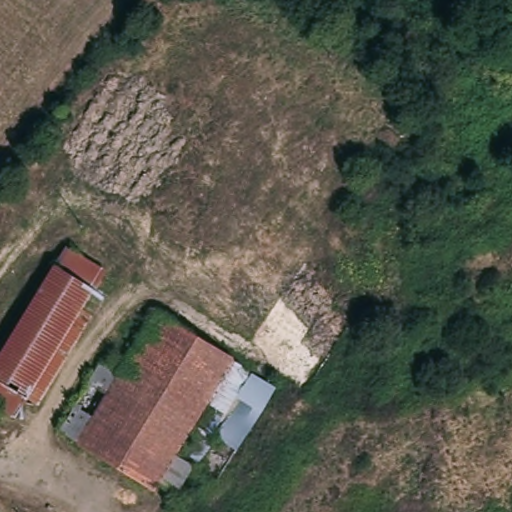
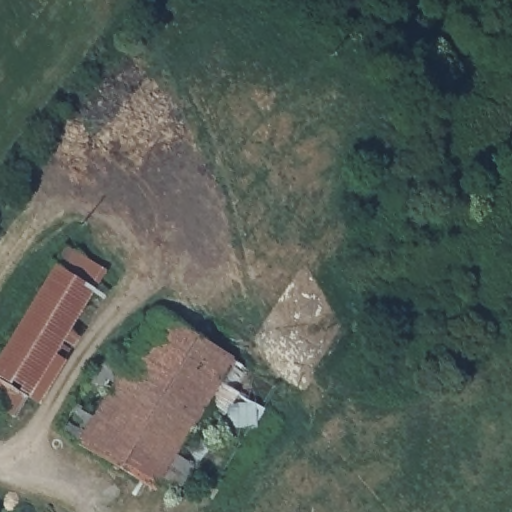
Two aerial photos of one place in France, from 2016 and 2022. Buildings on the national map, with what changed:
unchanged [(95,294),(56,270),(68,249),(106,275),(95,294)]
unchanged [(30,401),(0,381),(0,361),(56,270),(95,294),(30,401)]
unchanged [(98,362),(115,372),(154,310),(276,388),(217,480),(192,464),(173,497),(159,487),(156,491),(58,435),(98,362)]
unchanged [(16,423),(0,413),(0,381),(30,401),(16,423)]

